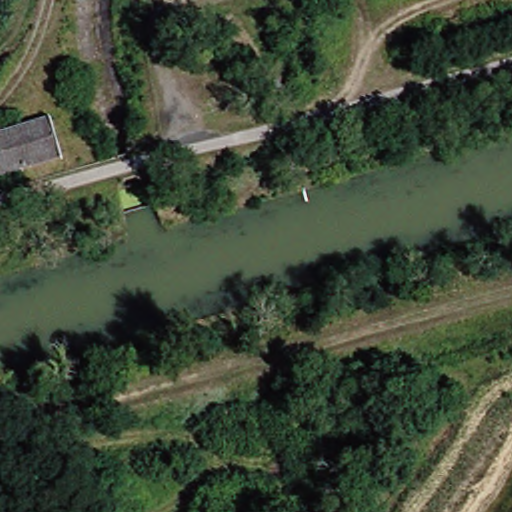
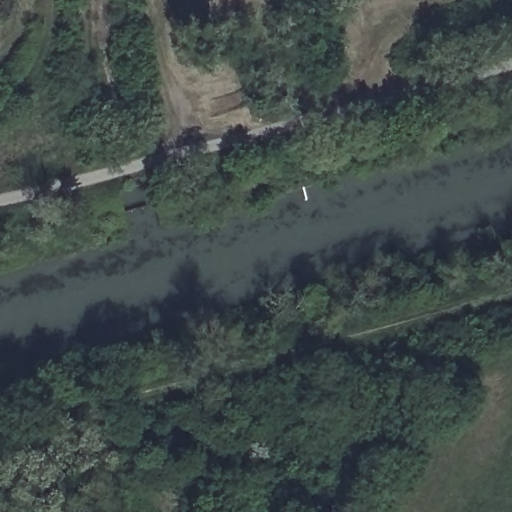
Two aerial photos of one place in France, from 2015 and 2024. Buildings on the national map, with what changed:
unchanged [(78,107),(75,99),(85,96),(87,105),(78,107)]
demolished [(247,104),(216,112),(214,105),(245,96),(247,104)]
demolished [(0,170),(0,168),(0,131),(57,116),(66,152),(68,160),(2,177),(0,170)]

